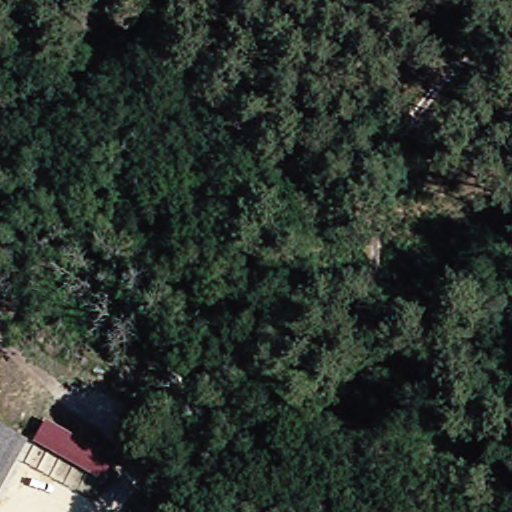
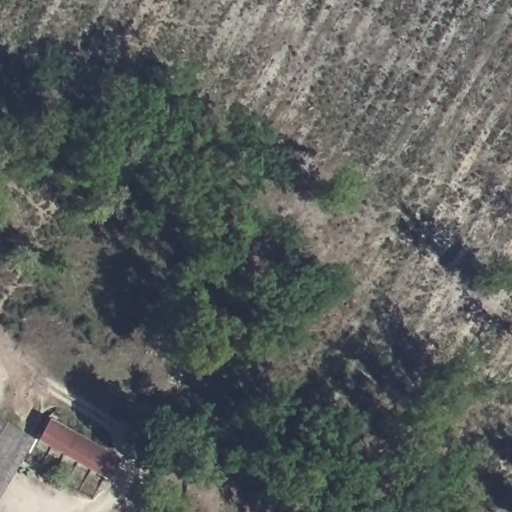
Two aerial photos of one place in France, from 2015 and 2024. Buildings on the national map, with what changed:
unchanged [(47,424),(115,460),(105,477),(36,441),(47,424)]
unchanged [(0,477),(0,430),(21,443),(0,477)]

